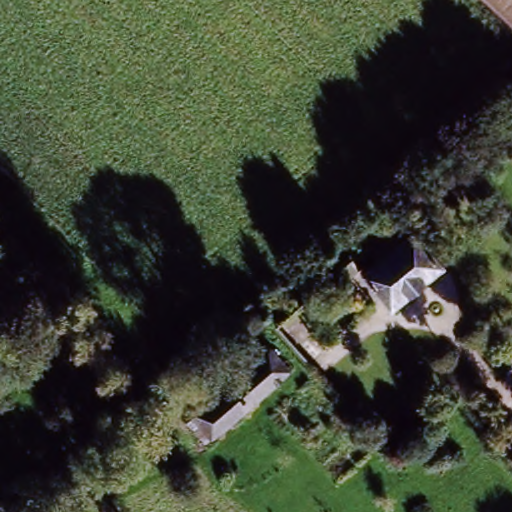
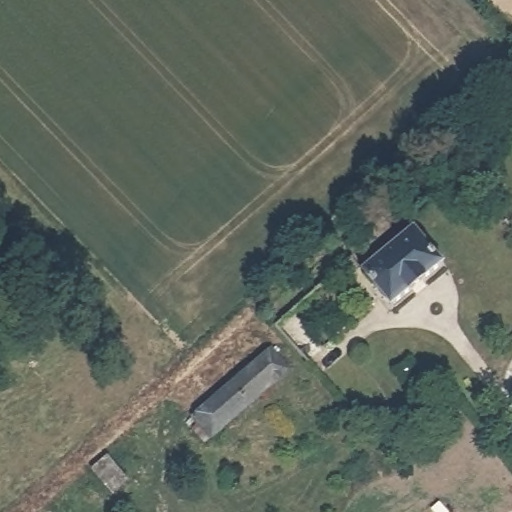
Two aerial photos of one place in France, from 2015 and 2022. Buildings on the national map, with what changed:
unchanged [(441,265),(389,309),(360,275),(368,268),(356,252),(383,230),(392,239),(407,226),(441,265)]
unchanged [(265,349),(288,375),(216,435),(195,409),(265,349)]
unchanged [(139,470),(120,486),(99,460),(117,445),(139,470)]

